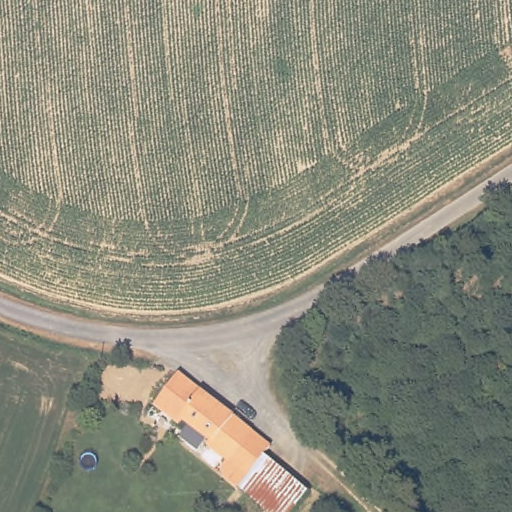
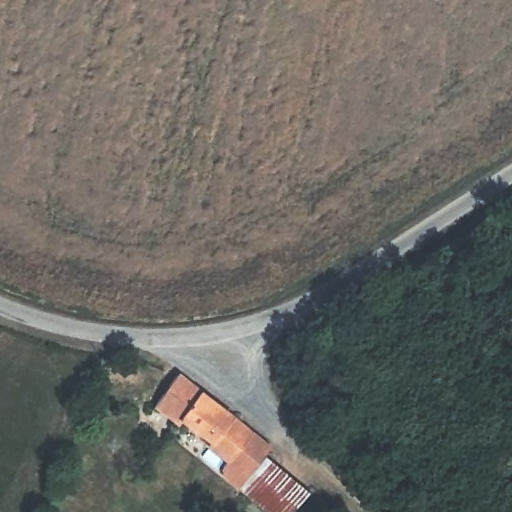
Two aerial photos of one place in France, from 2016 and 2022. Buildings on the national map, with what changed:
unchanged [(178,375),(225,407),(247,428),(266,446),(250,465),(236,481),(225,473),(221,461),(225,456),(204,439),(174,417),(157,404),(178,375)]
unchanged [(236,481),(250,465),(290,499),(279,512),(273,512),(242,486),(236,481)]

